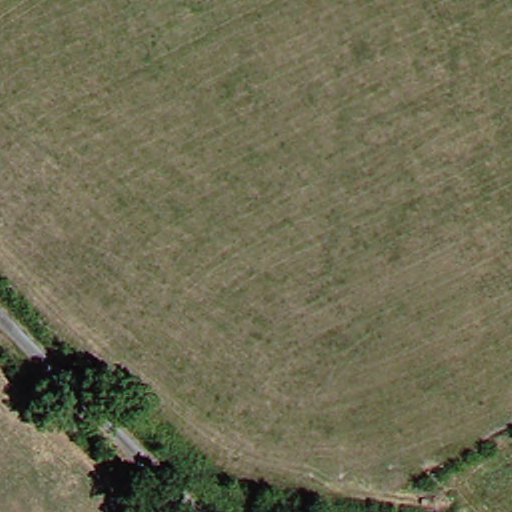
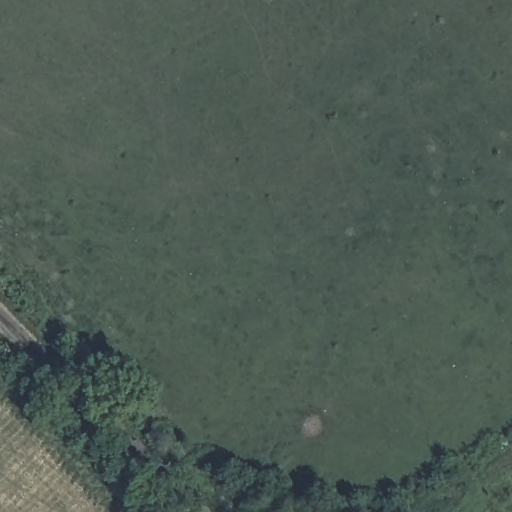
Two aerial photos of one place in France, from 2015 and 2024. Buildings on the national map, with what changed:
[]

